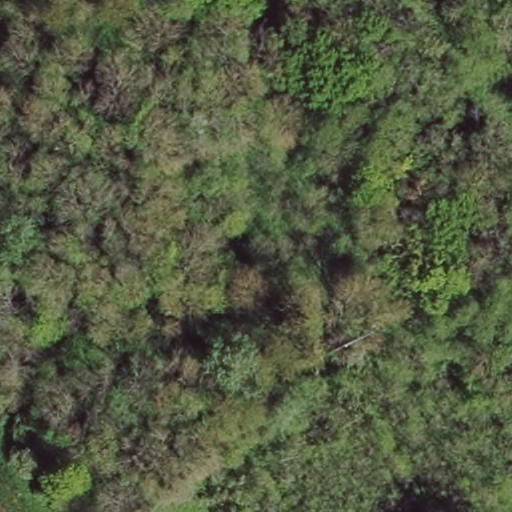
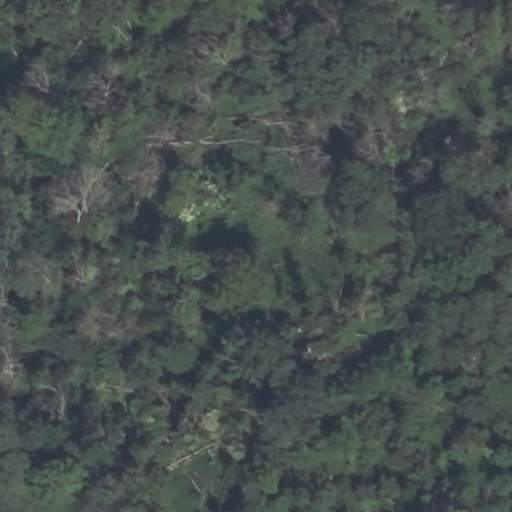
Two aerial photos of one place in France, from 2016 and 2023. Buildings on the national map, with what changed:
[]

